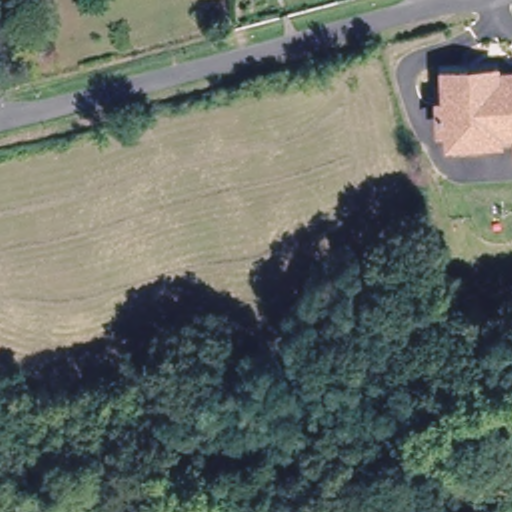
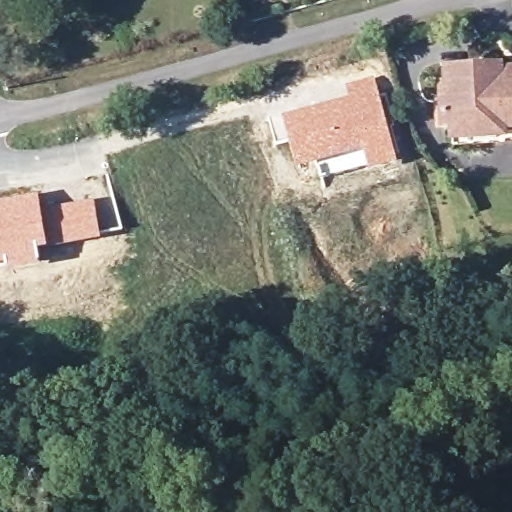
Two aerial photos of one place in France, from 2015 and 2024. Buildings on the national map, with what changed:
unchanged [(442,123),(441,96),(449,95),(448,64),(450,64),(450,66),(467,66),(467,64),(469,63),(499,62),(499,71),(500,72),(512,72),(512,125),(502,126),(502,133),(443,136),(442,123)]
new [(348,95),(345,83),(374,75),(399,161),(368,170),(363,153),(297,168),(281,115),(348,95)]
new [(41,195),(44,210),(48,227),(51,248),(40,251),(42,264),(9,270),(8,267),(0,268),(0,202),(41,195)]
new [(95,198),(103,239),(62,247),(59,226),(53,227),(52,226),(48,227),(44,210),(95,198)]

